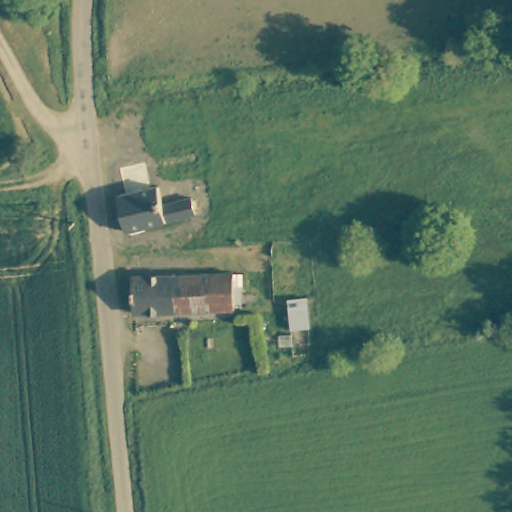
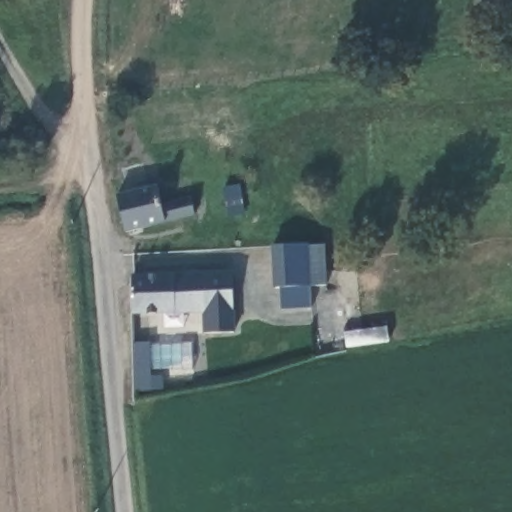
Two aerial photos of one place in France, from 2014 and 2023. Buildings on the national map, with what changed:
unchanged [(156,192),(160,211),(192,206),(195,218),(122,232),(115,198),(156,192)]
new [(272,246),(309,244),(309,247),(326,246),(327,284),(311,286),(311,308),(282,309),(280,288),(275,289),(272,246)]
unchanged [(237,315),(214,314),(142,311),(144,274),(215,277),(239,278),(237,315)]

